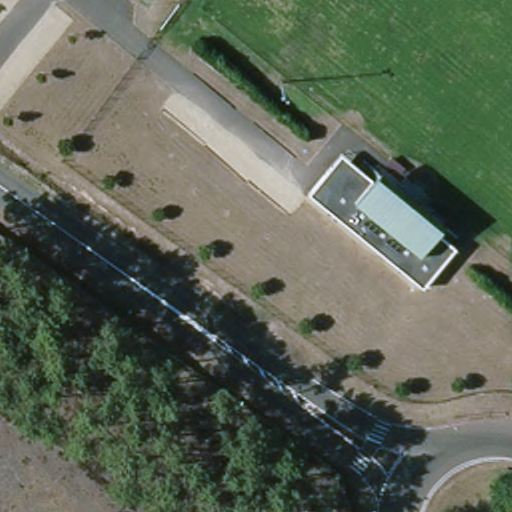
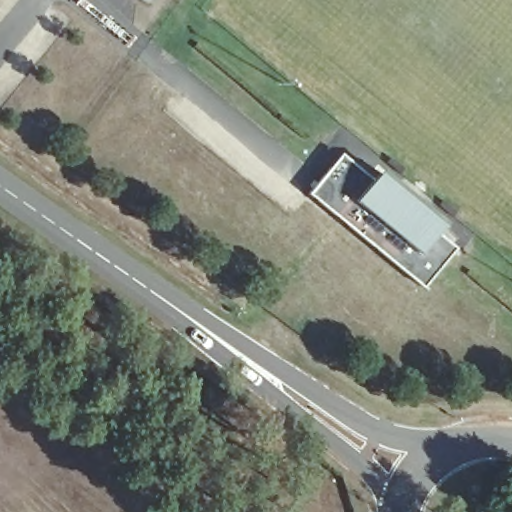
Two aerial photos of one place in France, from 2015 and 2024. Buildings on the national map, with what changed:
unchanged [(337,159),(342,152),(354,162),(362,169),(368,162),(454,231),(448,238),(457,245),(452,251),(425,285),(310,192),(331,166),(337,159)]

